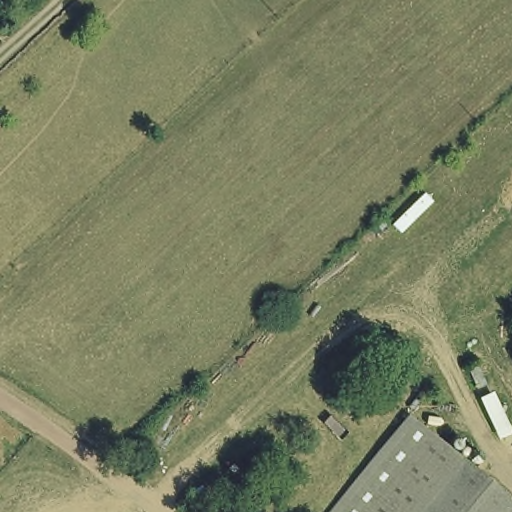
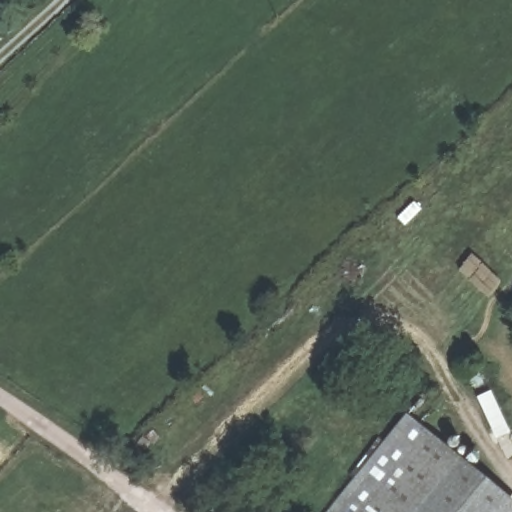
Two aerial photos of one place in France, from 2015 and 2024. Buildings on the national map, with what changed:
unchanged [(511,502),(503,512),(333,512),(408,417),(511,502)]

